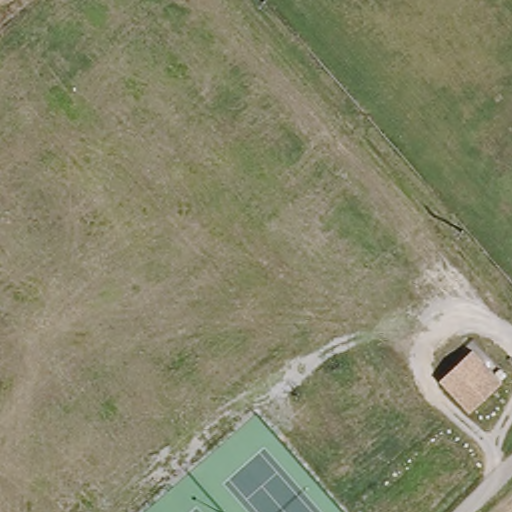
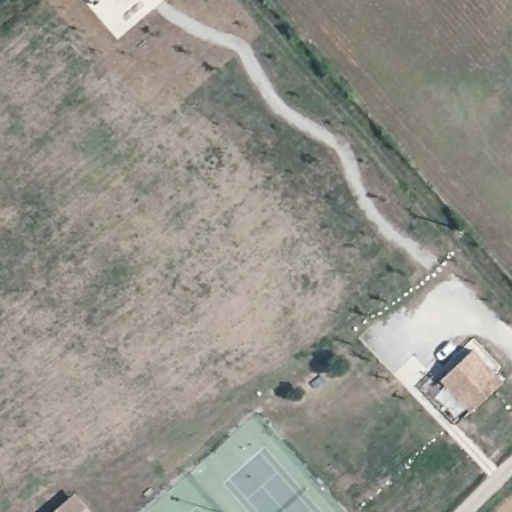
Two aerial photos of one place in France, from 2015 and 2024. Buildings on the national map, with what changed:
unchanged [(507,381),(475,411),(445,379),(477,349),(507,381)]
new [(92,512),(53,512),(75,494),(92,512)]

